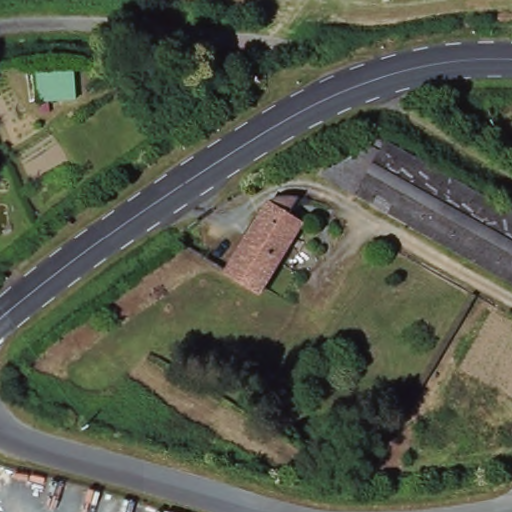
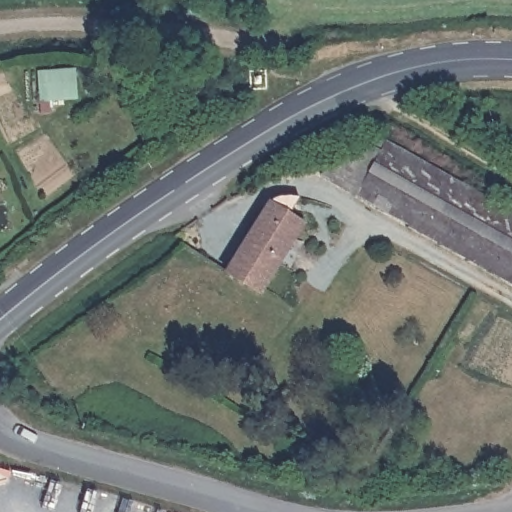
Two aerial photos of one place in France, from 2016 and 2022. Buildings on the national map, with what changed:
unchanged [(320,173),(367,146),(374,150),(381,140),(512,212),(512,280),(320,173)]
unchanged [(274,203),(288,197),(299,197),(288,216),(302,224),(260,293),(227,273),(263,216),(274,203)]

